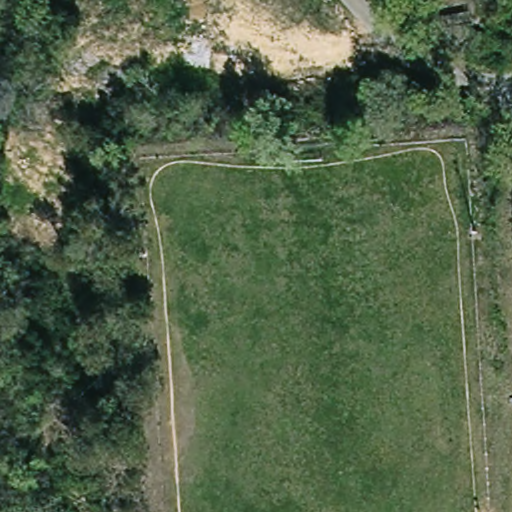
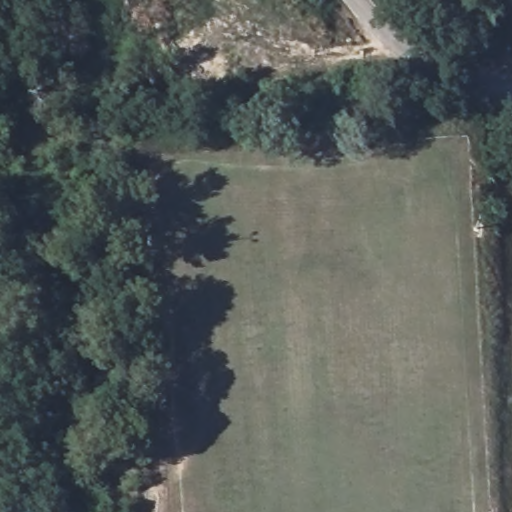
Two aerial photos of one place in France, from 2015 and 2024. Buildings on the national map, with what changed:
unchanged [(458,7),(460,27),(434,30),(433,9),(458,7)]

